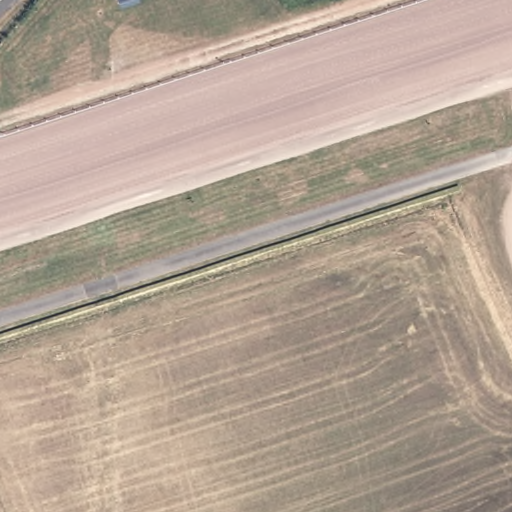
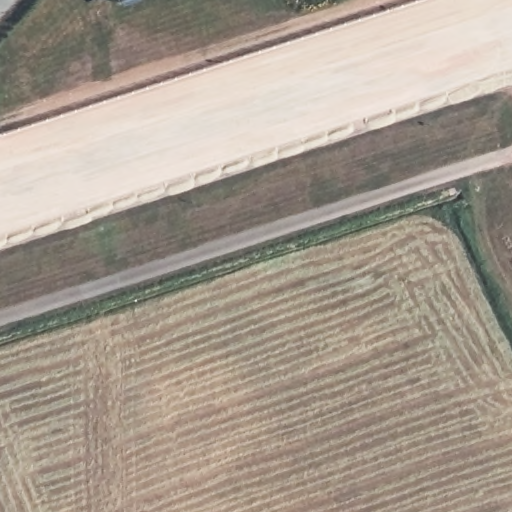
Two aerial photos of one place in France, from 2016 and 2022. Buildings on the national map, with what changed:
unchanged [(120,0),(124,0),(120,2),(120,0)]

